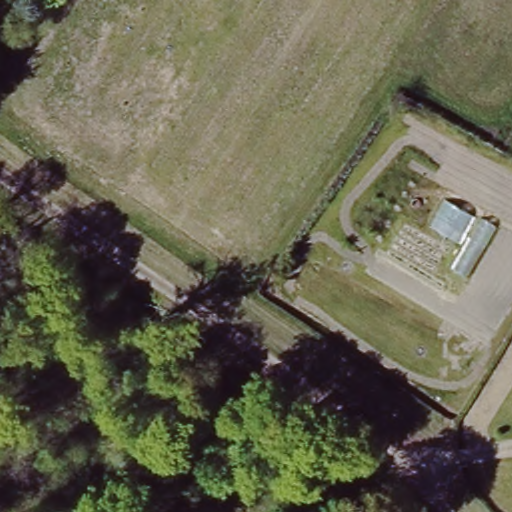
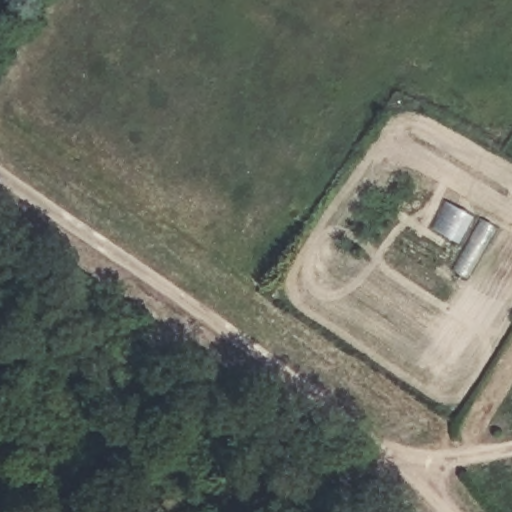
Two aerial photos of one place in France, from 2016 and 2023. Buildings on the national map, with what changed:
[]

